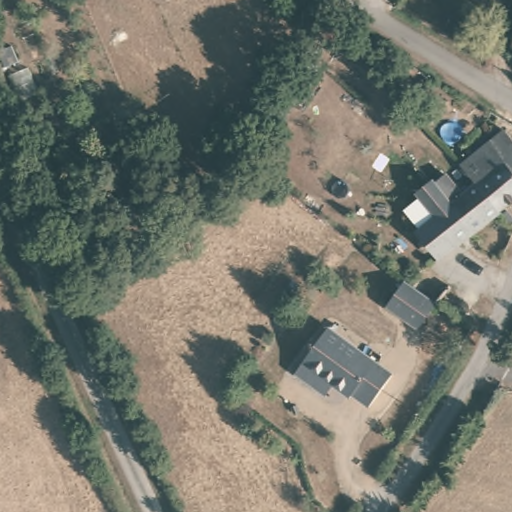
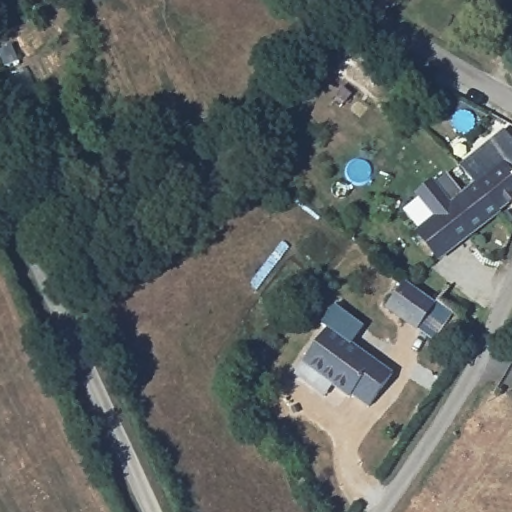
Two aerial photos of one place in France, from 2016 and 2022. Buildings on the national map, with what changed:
unchanged [(500,153),(512,144),(512,206),(497,216),(496,215),(472,188),(455,168),(490,141),(500,153)]
unchanged [(438,264),(415,238),(438,218),(420,197),(434,185),(452,206),(472,188),(496,215),(438,264)]
unchanged [(433,306),(415,329),(387,307),(405,285),(433,306)]
unchanged [(316,388),(297,373),(334,327),(396,378),(374,408),(359,397),(352,398),(339,387),(330,399),(316,388)]

